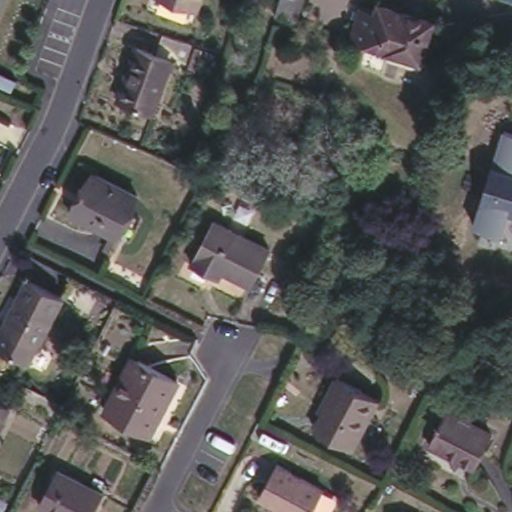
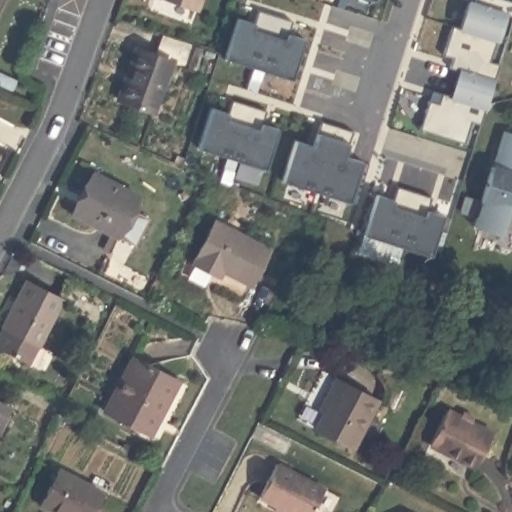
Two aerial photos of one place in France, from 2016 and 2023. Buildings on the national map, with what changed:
unchanged [(177,0),(192,0),(190,5),(177,0)]
demolished [(272,15),(276,0),(310,0),(301,25),(272,15)]
demolished [(424,54),(353,29),(363,0),(423,0),(439,6),(424,54)]
new [(416,130),(425,101),(437,105),(441,96),(461,101),(468,77),(449,72),(455,54),(447,51),(454,26),(461,29),(469,0),(476,1),(476,0),(512,0),(512,7),(472,146),(416,130)]
new [(222,59),(236,17),(250,23),(255,11),(289,21),(284,36),(301,40),(288,81),(222,59)]
unchanged [(181,68),(165,62),(146,114),(113,103),(131,49),(150,56),(157,38),(188,48),(181,68)]
new [(197,150),(210,108),(225,114),(229,101),(263,112),(259,128),(275,131),(262,172),(197,150)]
unchanged [(512,130),(512,214),(505,234),(476,225),(506,128),(512,130)]
new [(277,183),(290,141),(305,147),(309,135),(343,145),(339,161),(355,164),(342,205),(277,183)]
unchanged [(89,174),(136,196),(116,239),(70,217),(89,174)]
new [(364,235),(377,193),(392,199),(396,186),(430,197),(426,212),(442,216),(429,256),(364,235)]
unchanged [(210,272),(191,263),(213,217),(268,243),(250,281),(222,268),(217,276),(210,272)]
unchanged [(32,363),(0,346),(0,322),(23,277),(65,298),(32,363)]
unchanged [(131,359),(175,380),(150,434),(106,413),(131,359)]
unchanged [(312,409),(318,395),(329,375),(370,397),(346,445),(309,426),(317,411),(312,409)]
unchanged [(0,433),(0,401),(11,407),(0,433)]
unchanged [(454,415),(456,409),(467,415),(464,420),(486,431),(469,463),(426,441),(443,409),(454,415)]
unchanged [(271,508),(274,503),(258,495),(276,462),(321,486),(308,512),(292,512),(287,510),(286,512),(279,512),(271,508)]
unchanged [(60,469),(104,491),(94,512),(62,512),(44,503),(60,469)]

